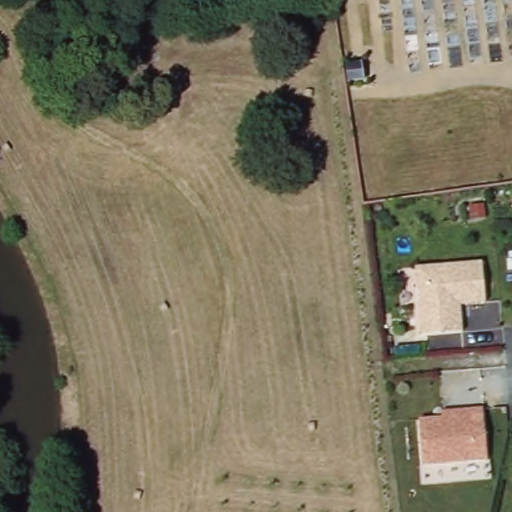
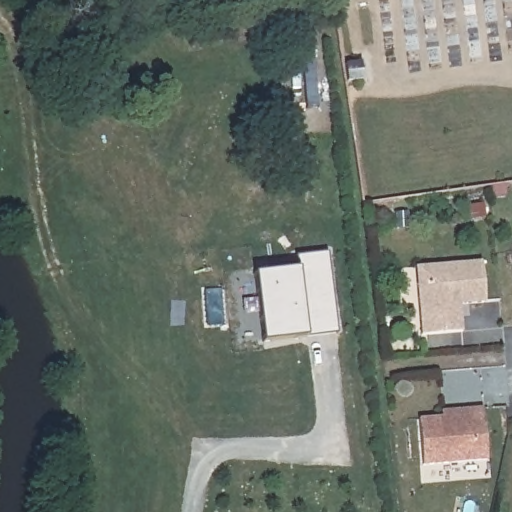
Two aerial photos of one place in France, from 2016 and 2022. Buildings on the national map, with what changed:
new [(304,337),(262,342),(253,273),(297,268),(295,256),(328,252),(338,332),(304,337)]
unchanged [(415,265),(431,263),(481,257),(486,298),(456,302),(457,312),(462,311),(464,328),(423,332),(417,281),(415,265)]
unchanged [(442,416),(441,410),(466,407),(483,405),(489,457),(424,465),(419,418),(442,416)]

